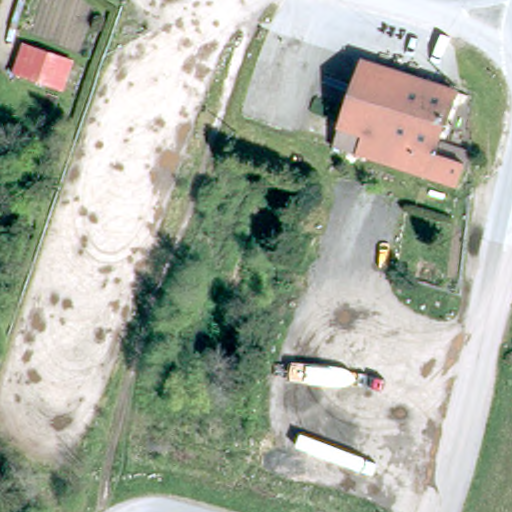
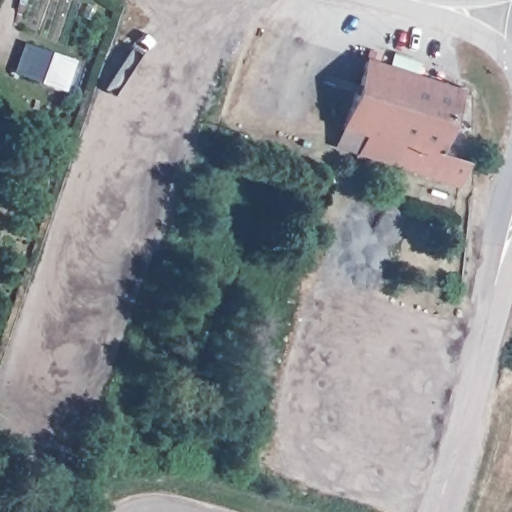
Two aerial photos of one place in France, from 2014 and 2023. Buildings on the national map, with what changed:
unchanged [(61,81),(10,64),(20,39),(70,56),(61,81)]
unchanged [(337,135),(362,59),(461,87),(444,150),(467,160),(454,183),(337,135)]
unchanged [(317,286),(305,280),(310,261),(325,266),(317,286)]

